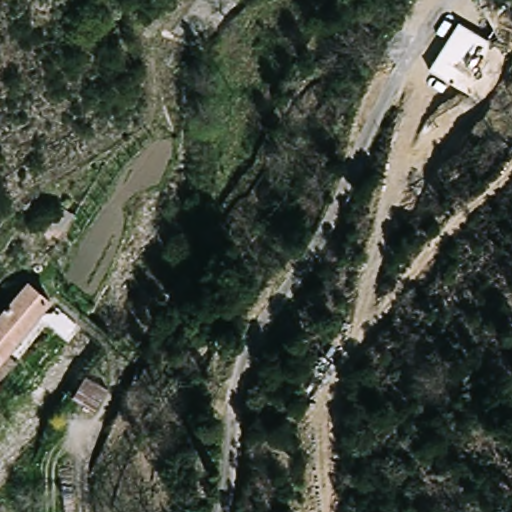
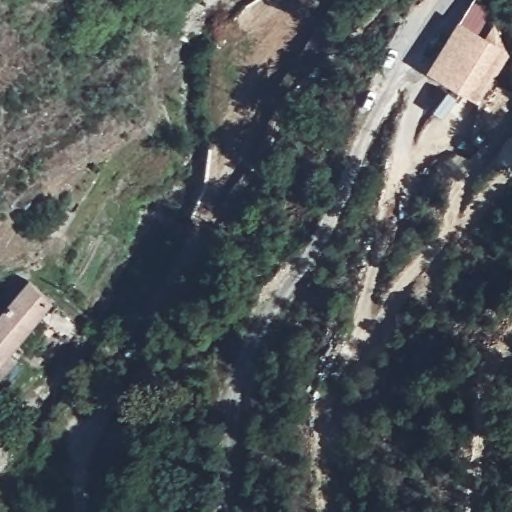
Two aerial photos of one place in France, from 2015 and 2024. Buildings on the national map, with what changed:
new [(457,20),(484,38),(493,26),(510,53),(477,106),(425,72),(457,20)]
demolished [(447,24),(462,37),(442,69),(424,56),(447,24)]
unchanged [(72,211),(82,219),(64,241),(52,231),(67,213),(72,211)]
unchanged [(12,363),(0,378),(0,315),(2,317),(26,289),(45,305),(3,357),(12,363)]
unchanged [(42,324),(52,311),(74,328),(65,342),(42,324)]
unchanged [(85,376),(106,388),(94,414),(70,402),(85,376)]

